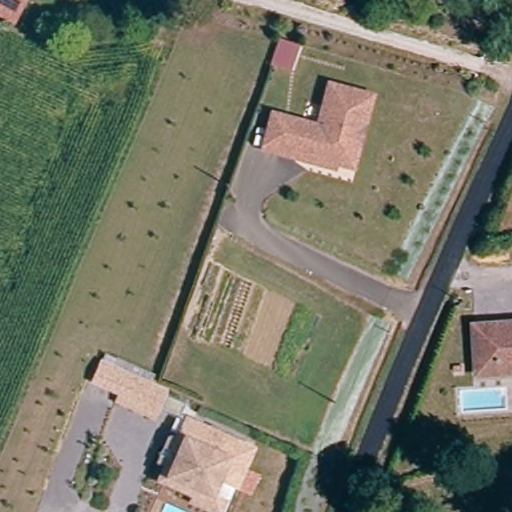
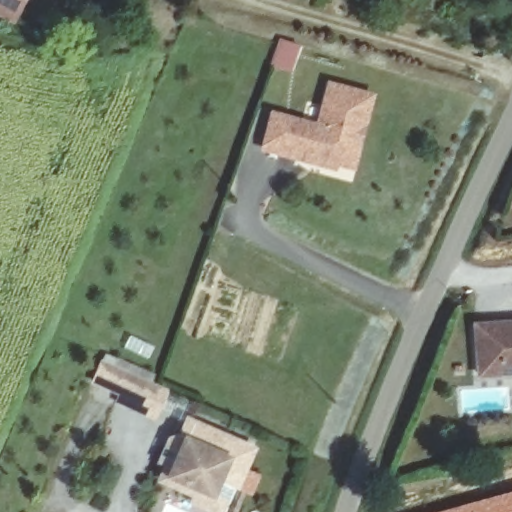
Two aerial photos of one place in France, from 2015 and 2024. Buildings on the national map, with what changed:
unchanged [(22,0),(12,21),(0,14),(0,0),(22,0)]
unchanged [(297,44),(289,67),(271,60),(279,36),(297,44)]
unchanged [(291,157),(267,149),(264,147),(252,141),(265,111),(279,117),(306,127),(321,91),(358,106),(333,169),(320,164),(317,169),(291,157)]
unchanged [(467,321),(512,318),(512,368),(471,372),(467,321)]
unchanged [(121,367),(150,380),(163,386),(150,412),(111,396),(121,367)]
unchanged [(213,473),(206,488),(166,472),(179,431),(185,418),(245,443),(230,481),(225,479),(213,473)]
unchanged [(214,507),(183,494),(178,486),(153,476),(160,461),(152,458),(163,432),(174,428),(179,431),(166,472),(206,488),(213,473),(225,479),(214,507)]
new [(512,512),(433,512),(512,490),(512,512)]

